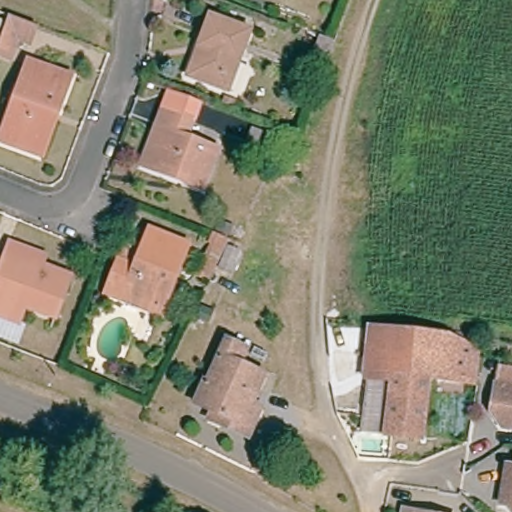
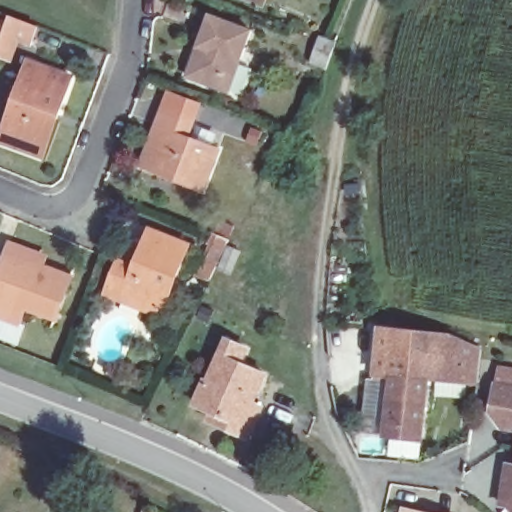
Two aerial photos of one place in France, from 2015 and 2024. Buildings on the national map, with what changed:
unchanged [(24,43),(10,39),(3,60),(0,59),(0,19),(1,15),(31,26),(24,43)]
unchanged [(251,31),(229,89),(188,74),(210,16),(251,31)]
unchanged [(309,60),(315,40),(318,34),(335,40),(333,46),(326,65),(309,60)]
unchanged [(0,141),(0,138),(29,62),(72,77),(59,111),(41,156),(34,153),(0,141)]
unchanged [(150,126),(157,109),(188,121),(182,138),(213,149),(198,188),(179,181),(135,164),(150,126)]
unchanged [(123,300),(107,293),(120,260),(125,243),(142,250),(149,230),(187,245),(174,279),(159,315),(123,300)]
unchanged [(205,257),(212,245),(209,243),(214,232),(231,238),(219,263),(205,257)]
unchanged [(66,276),(50,317),(19,306),(16,314),(0,308),(0,257),(33,269),(35,265),(66,276)]
unchanged [(364,330),(445,338),(445,337),(475,351),(472,387),(424,383),(388,380),(388,383),(360,381),(364,330)]
unchanged [(207,409),(190,401),(200,379),(204,380),(222,340),(244,349),(237,365),(262,375),(249,403),(260,407),(255,417),(246,437),(214,423),(204,419),(207,409)]
unchanged [(388,380),(424,383),(419,440),(383,437),(388,383),(388,380)]
unchanged [(497,422),(487,407),(492,380),(512,383),(512,424),(497,422)]
unchanged [(504,501),(497,499),(503,460),(512,461),(512,512),(504,501)]

